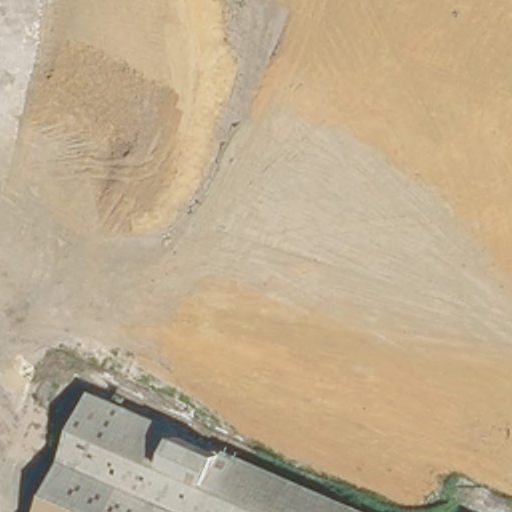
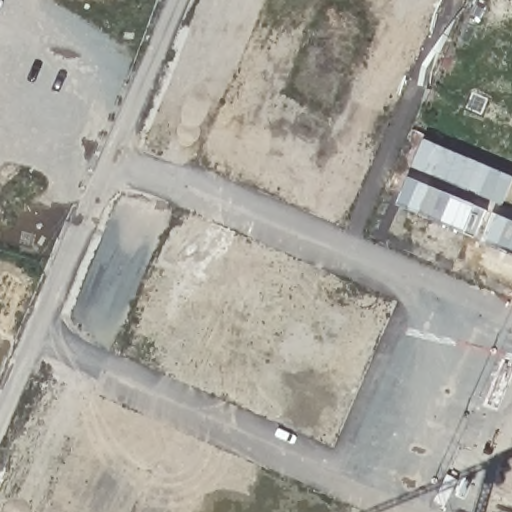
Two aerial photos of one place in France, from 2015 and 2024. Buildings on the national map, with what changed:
new [(425,141),(512,177),(512,181),(503,205),(414,168),(425,141)]
new [(476,239),(398,205),(410,178),(489,212),(476,239)]
demolished [(375,512),(37,512),(91,390),(375,512)]

